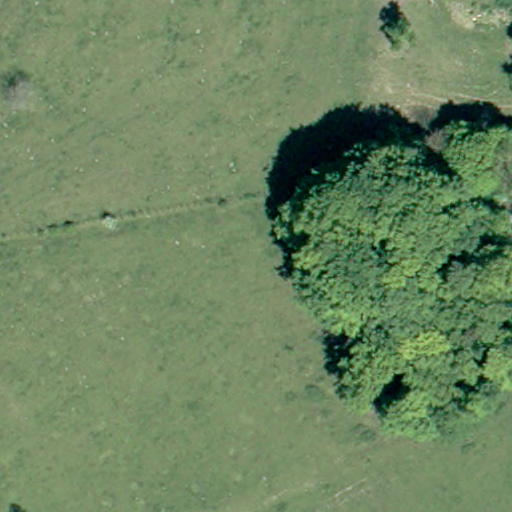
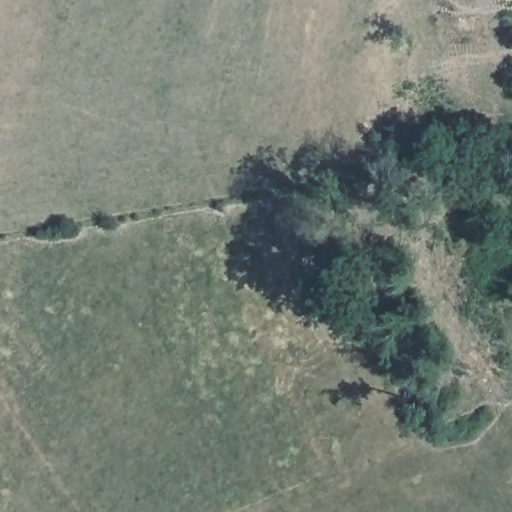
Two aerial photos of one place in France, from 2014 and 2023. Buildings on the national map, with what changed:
[]

